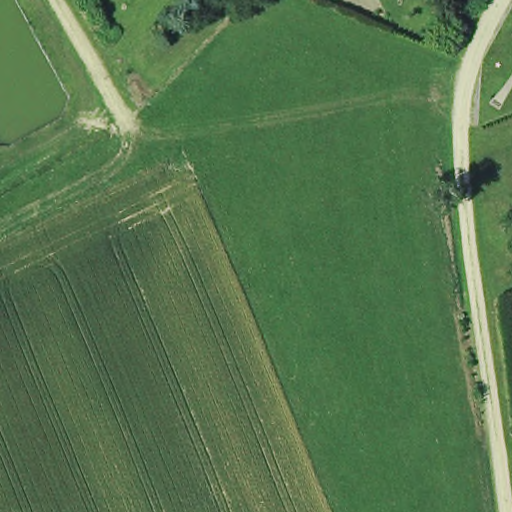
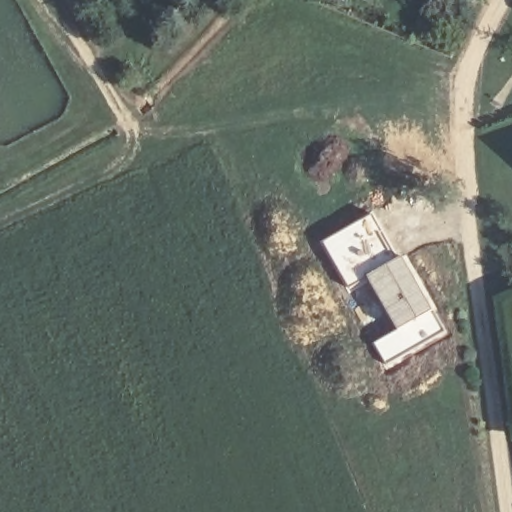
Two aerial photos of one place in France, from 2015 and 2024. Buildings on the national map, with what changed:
new [(372,215),(390,252),(357,271),(361,278),(349,286),(322,242),(372,215)]
new [(405,255),(436,308),(396,330),(365,276),(405,255)]
new [(396,330),(436,308),(447,332),(386,365),(373,342),(396,330)]

